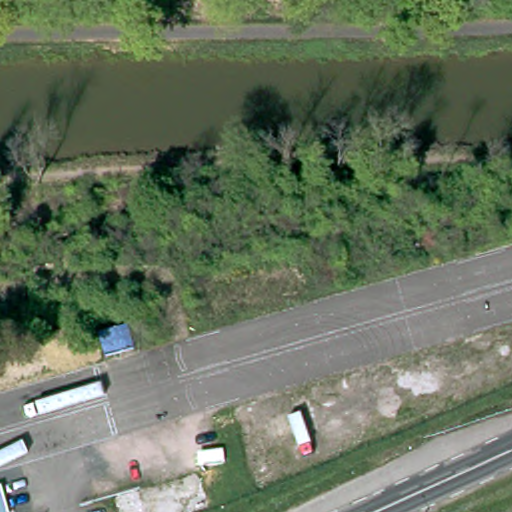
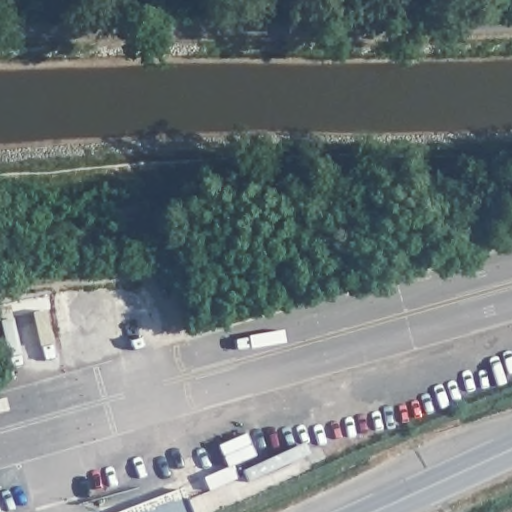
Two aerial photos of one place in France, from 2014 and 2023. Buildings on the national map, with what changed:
unchanged [(0,486),(8,512),(0,512),(0,486)]
new [(183,488),(192,512),(123,512),(183,488)]

